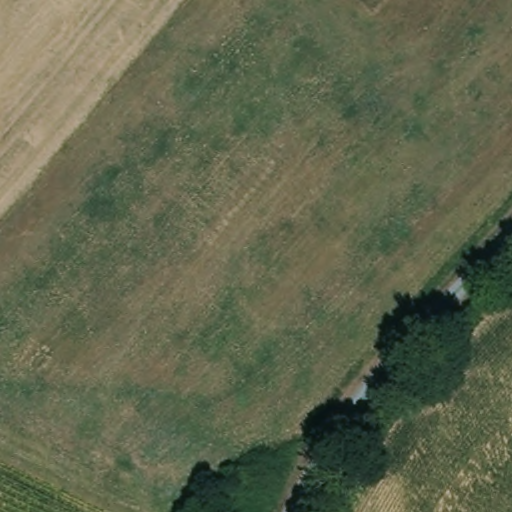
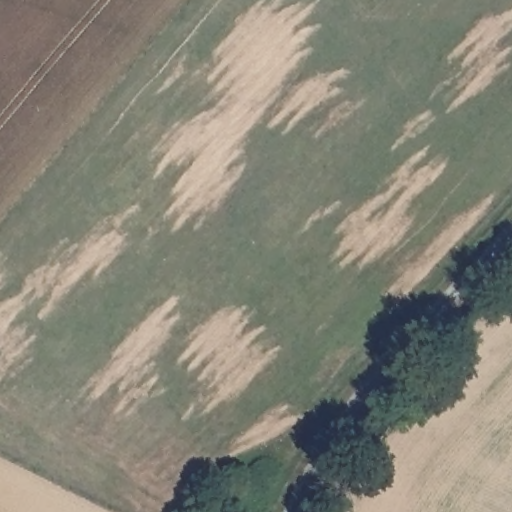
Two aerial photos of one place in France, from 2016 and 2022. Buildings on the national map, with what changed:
[]

